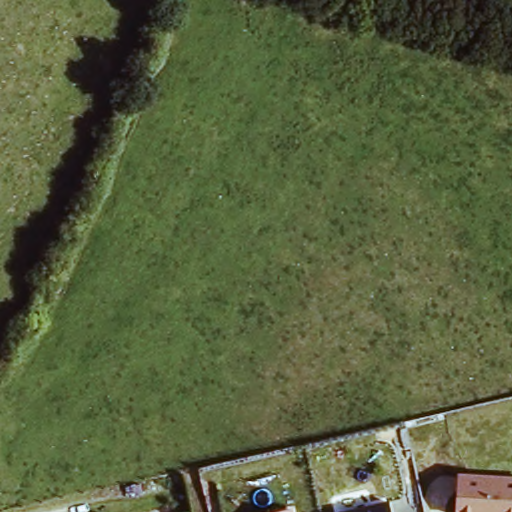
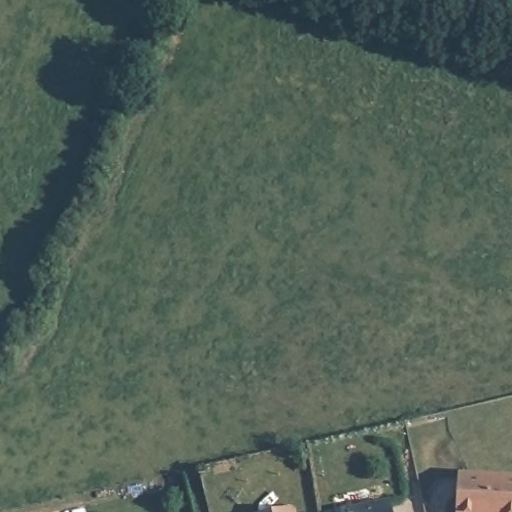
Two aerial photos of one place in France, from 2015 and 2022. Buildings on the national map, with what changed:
unchanged [(467,470),(512,472),(512,512),(461,512),(467,470)]
unchanged [(345,507),(394,496),(398,512),(346,512),(345,507)]
unchanged [(295,503),(297,512),(259,512),(295,503)]

